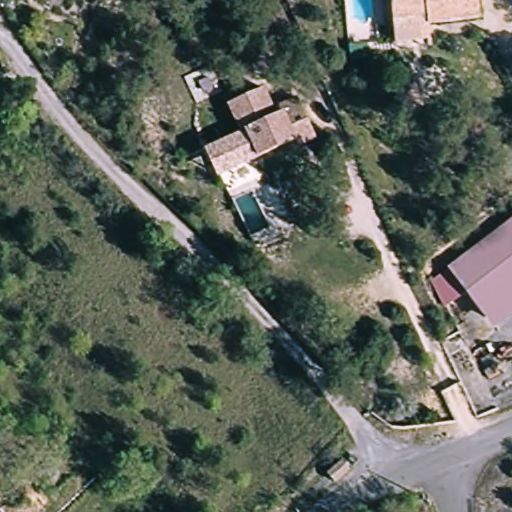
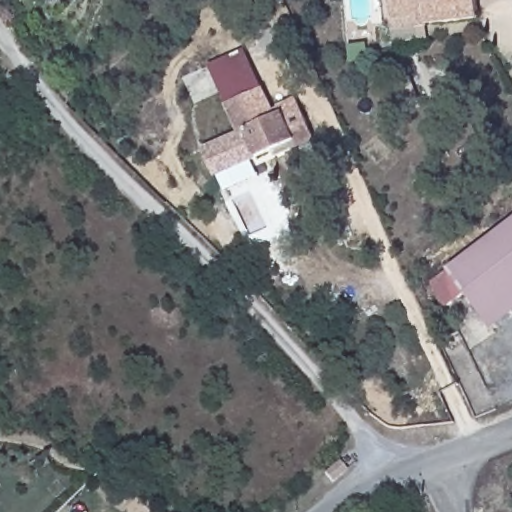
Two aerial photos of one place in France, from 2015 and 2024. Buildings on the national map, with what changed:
unchanged [(394,33),(392,33),(391,17),(391,0),(474,0),(475,24),(425,27),(425,32),(394,33)]
new [(208,66),(244,48),(261,86),(226,104),(208,66)]
unchanged [(243,127),(233,132),(225,105),(261,86),(271,111),(293,99),(316,142),(296,152),(291,144),(255,159),(243,127)]
unchanged [(243,127),(255,159),(216,176),(201,151),(233,132),(243,127)]
unchanged [(485,317),(464,292),(446,307),(433,280),(512,215),(512,295),(485,317)]
unchanged [(494,329),(485,317),(512,295),(512,314),(494,329)]
unchanged [(323,469),(331,477),(317,492),(309,483),(323,469)]

